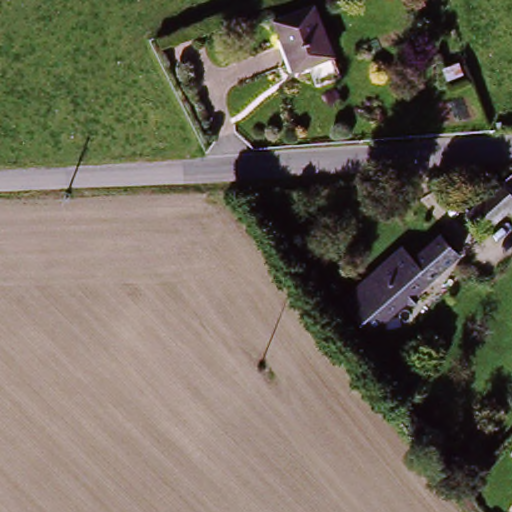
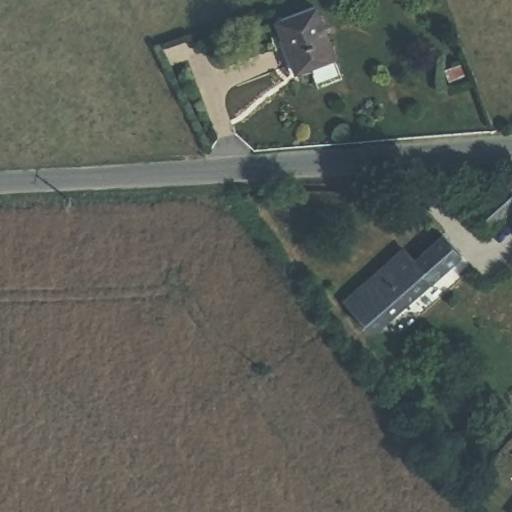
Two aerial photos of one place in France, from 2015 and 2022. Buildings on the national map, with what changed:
unchanged [(331,57),(291,72),(271,21),(312,7),(331,57)]
unchanged [(500,187),(512,175),(512,200),(500,187)]
unchanged [(512,200),(512,209),(505,215),(481,238),(463,218),(500,187),(512,200)]
unchanged [(505,215),(512,209),(512,222),(505,215)]
unchanged [(371,331),(341,300),(400,247),(411,258),(439,233),(457,254),(371,331)]

